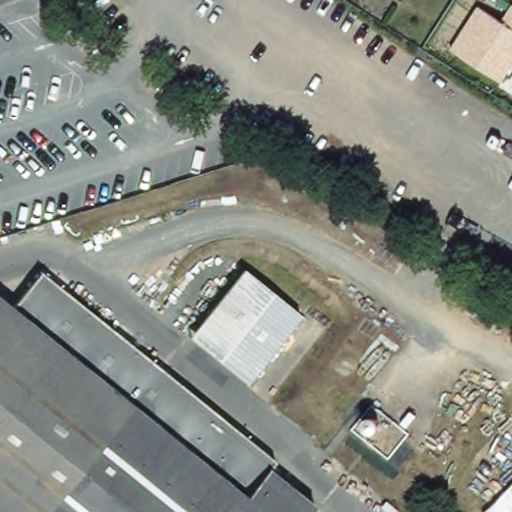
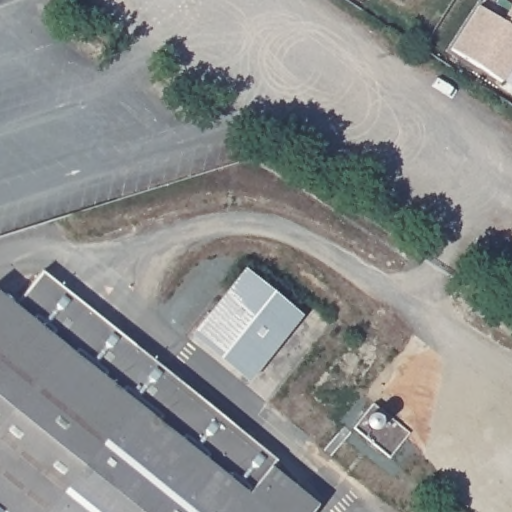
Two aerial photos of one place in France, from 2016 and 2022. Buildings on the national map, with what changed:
unchanged [(501,82),(451,49),(478,7),(502,22),(512,7),(512,65),(501,82)]
unchanged [(242,270),(296,315),(255,367),(201,322),(242,270)]
unchanged [(0,300),(11,309),(40,272),(277,458),(267,471),(316,508),(313,512),(3,512),(0,510),(0,300)]
unchanged [(242,382),(188,339),(201,322),(255,367),(242,382)]
unchanged [(442,512),(439,512),(440,511),(442,512)]

